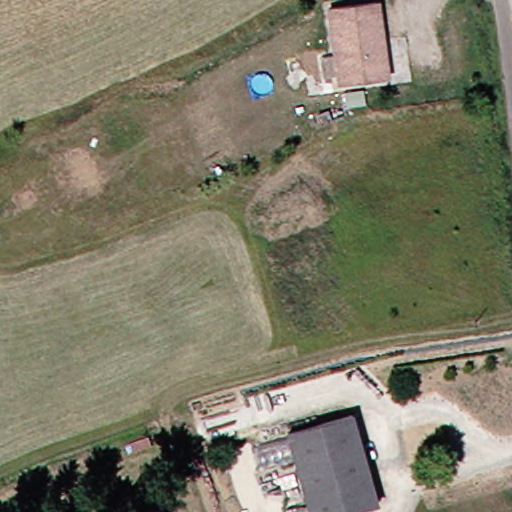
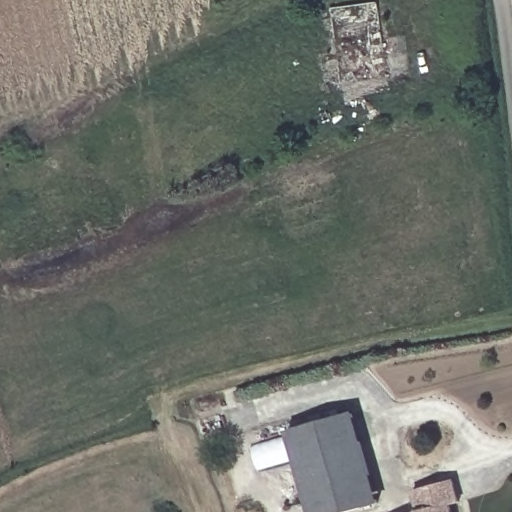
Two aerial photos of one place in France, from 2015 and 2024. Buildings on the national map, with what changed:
unchanged [(389,76),(342,82),(333,9),(380,1),(389,76)]
unchanged [(318,512),(291,438),(350,417),(379,501),(351,512),(318,512)]
new [(457,480),(461,501),(451,505),(452,512),(417,512),(412,491),(457,480)]

